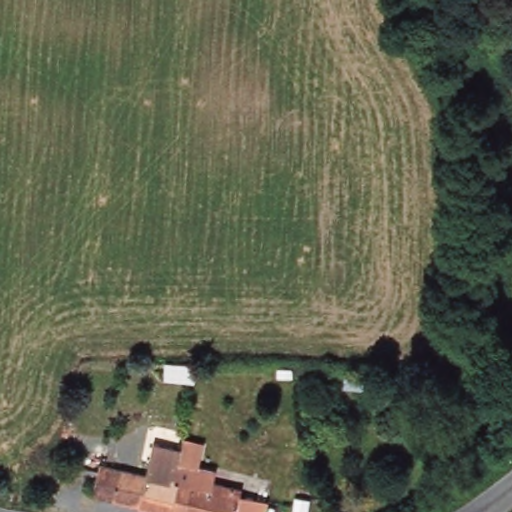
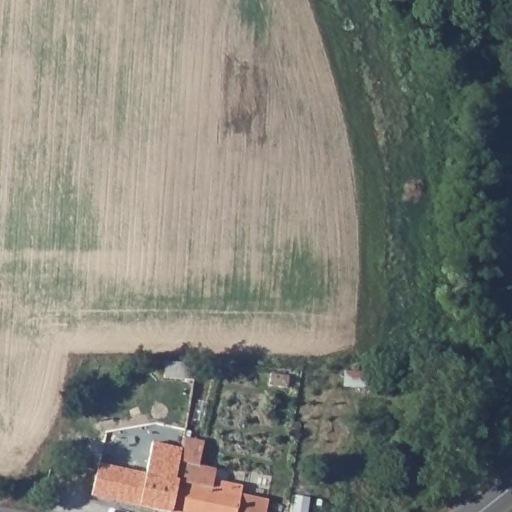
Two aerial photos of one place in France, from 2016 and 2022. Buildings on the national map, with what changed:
unchanged [(197,365),(194,381),(165,378),(165,363),(197,365)]
unchanged [(374,388),(343,386),(345,371),(375,373),(374,388)]
unchanged [(191,512),(172,512),(97,495),(105,465),(151,475),(158,443),(187,450),(180,480),(198,484),(191,512)]
unchanged [(270,512),(191,512),(198,484),(180,480),(187,450),(207,451),(205,466),(215,468),(221,470),(219,481),(230,484),(229,490),(245,494),(272,500),(270,512)]

